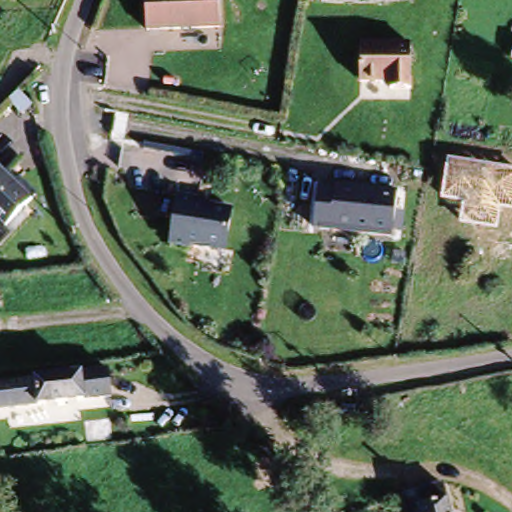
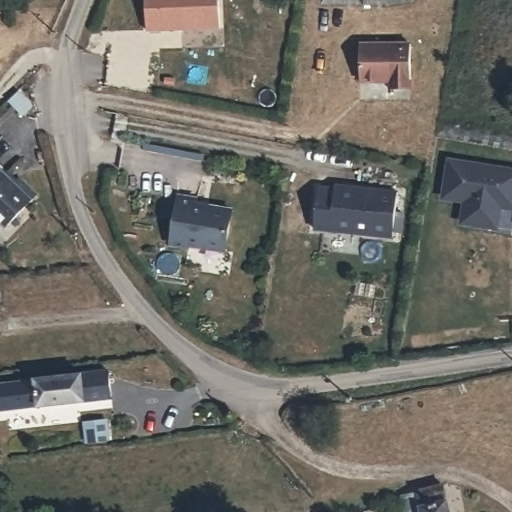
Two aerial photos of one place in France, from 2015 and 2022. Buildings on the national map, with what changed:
unchanged [(156,30),(155,0),(227,0),(228,27),(156,30)]
unchanged [(371,45),(420,42),(421,83),(401,86),(399,77),(371,79),(371,45)]
unchanged [(53,105),(40,116),(28,101),(41,91),(53,105)]
unchanged [(499,228),(461,223),(463,201),(444,198),(449,159),(512,168),(512,210),(502,208),(499,228)]
unchanged [(0,224),(0,172),(6,179),(14,173),(35,199),(28,206),(3,227),(0,224)]
unchanged [(326,228),(331,187),(353,189),(354,186),(402,191),(397,236),(326,228)]
unchanged [(238,205),(232,246),(194,241),(193,243),(178,241),(186,192),(203,195),(203,200),(238,205)]
unchanged [(0,412),(0,382),(105,372),(107,402),(0,412)]
unchanged [(399,489),(443,479),(452,512),(405,512),(399,489)]

